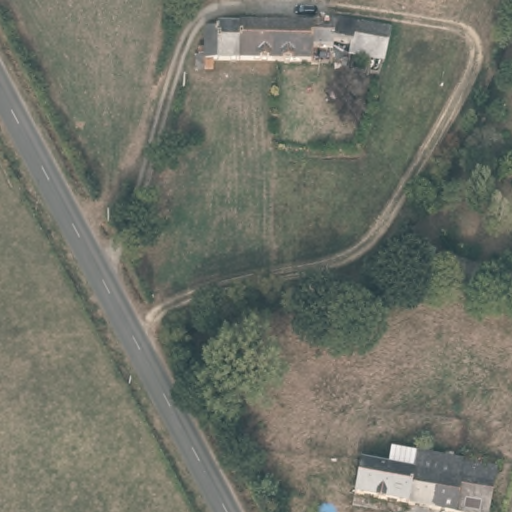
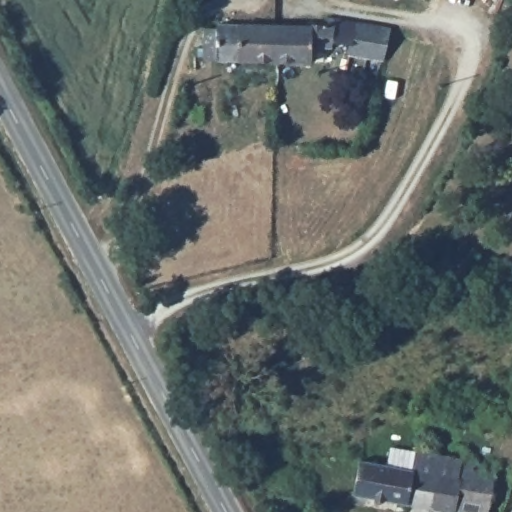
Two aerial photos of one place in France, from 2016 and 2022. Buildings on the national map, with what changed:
unchanged [(347,0),(354,0),(351,1),(347,0)]
unchanged [(274,28),(276,28),(274,61),(272,61),(246,60),(205,57),(204,66),(191,66),(193,51),(199,51),(201,44),(207,44),(208,31),(219,31),(220,26),(257,28),(274,28)]
unchanged [(334,30),(336,26),(389,35),(384,66),(347,59),(347,51),(332,49),(332,55),(309,53),(309,64),(274,61),(276,28),(334,30)]
unchanged [(490,512),(429,512),(354,495),(361,461),(387,467),(391,449),(418,455),(498,474),(490,512)]

